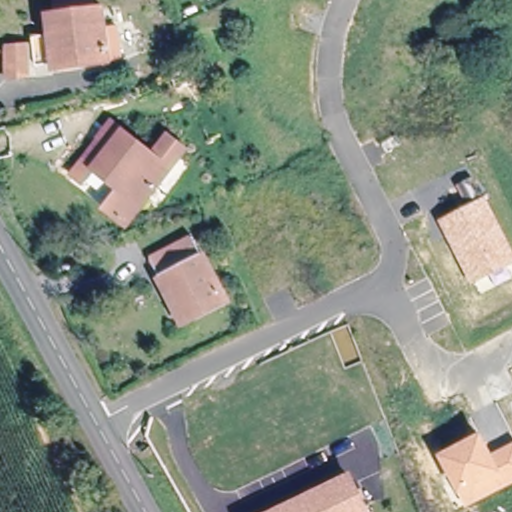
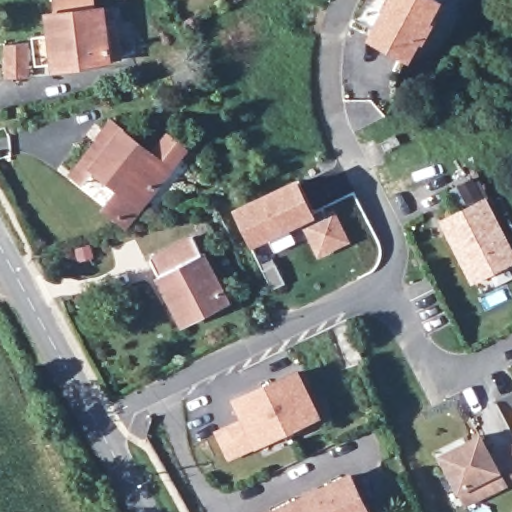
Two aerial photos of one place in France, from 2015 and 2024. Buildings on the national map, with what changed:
unchanged [(33,68),(31,37),(45,35),(44,16),(53,15),(50,0),(93,0),(94,9),(105,8),(108,28),(118,27),(122,62),(48,71),(48,66),(33,68)]
new [(435,23),(424,43),(419,41),(409,60),(366,39),(386,0),(441,0),(431,20),(435,23)]
unchanged [(4,48),(29,47),(29,83),(4,83),(4,48)]
unchanged [(99,165),(89,157),(108,135),(105,133),(116,120),(171,164),(127,219),(108,204),(124,185),(114,177),(99,165)]
new [(298,180),(313,210),(322,205),(326,214),(332,211),(345,238),(318,251),(305,225),(302,227),(298,219),(254,240),(238,209),(298,180)]
unchanged [(512,249),(512,264),(471,284),(438,219),(484,196),(512,249)]
unchanged [(164,289),(158,276),(160,275),(150,255),(192,234),(227,301),(188,321),(183,323),(164,289)]
new [(323,411),(254,446),(227,461),(213,431),(241,416),(232,397),(299,366),(323,411)]
unchanged [(491,452),(512,443),(512,484),(464,507),(437,455),(481,432),(491,452)]
unchanged [(370,512),(266,512),(350,471),(370,512)]

